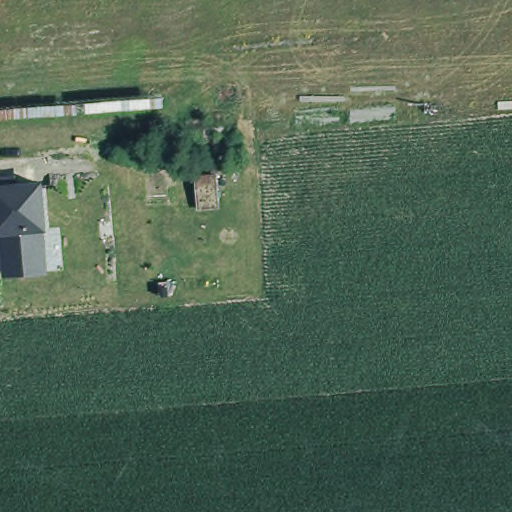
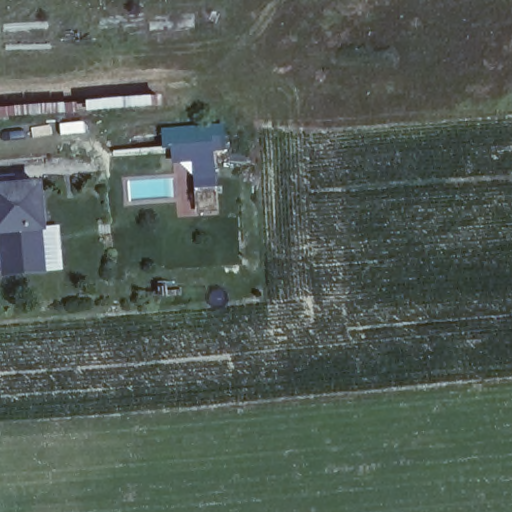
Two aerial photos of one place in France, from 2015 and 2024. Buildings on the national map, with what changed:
new [(224,121),(226,149),(212,151),(216,187),(193,189),(190,162),(171,164),(169,149),(161,150),(160,127),(224,121)]
unchanged [(1,278),(0,266),(0,175),(17,173),(17,182),(43,180),(47,231),(45,231),(49,273),(1,278)]

